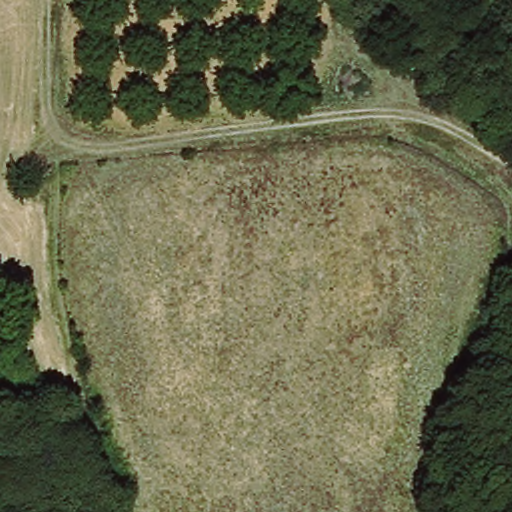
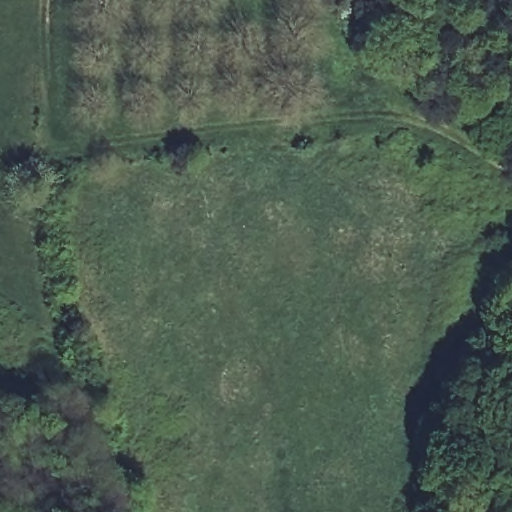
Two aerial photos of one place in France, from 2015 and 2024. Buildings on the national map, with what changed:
[]

